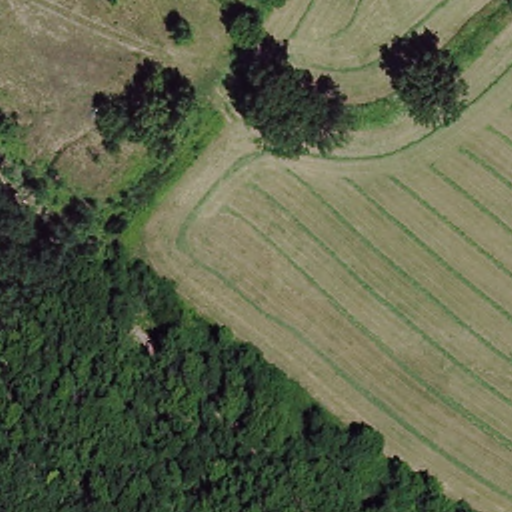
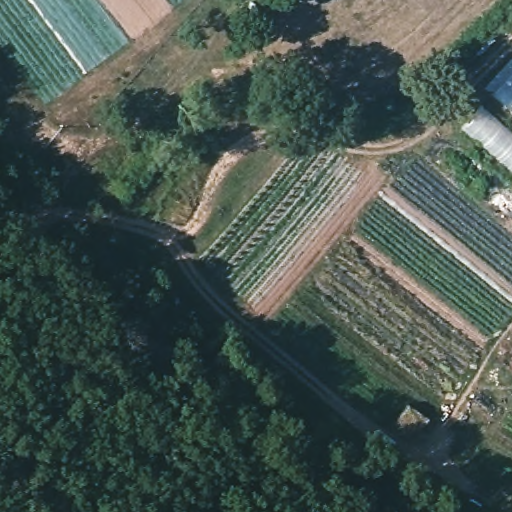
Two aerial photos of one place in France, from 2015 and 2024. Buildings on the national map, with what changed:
new [(492,92),(512,71),(512,110),(492,92)]
new [(512,133),(512,173),(462,129),(483,108),(512,133)]
demolished [(409,503),(420,512),(402,512),(409,503)]

